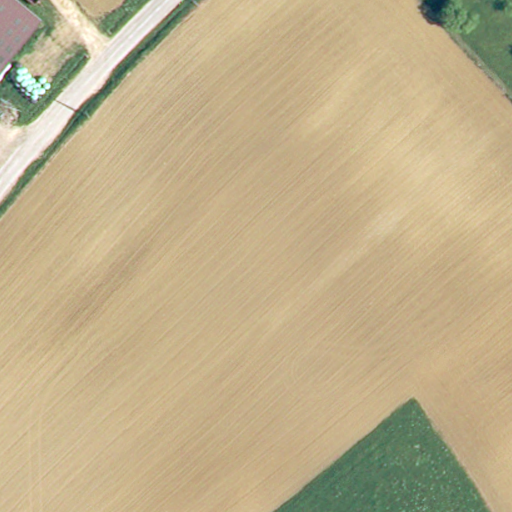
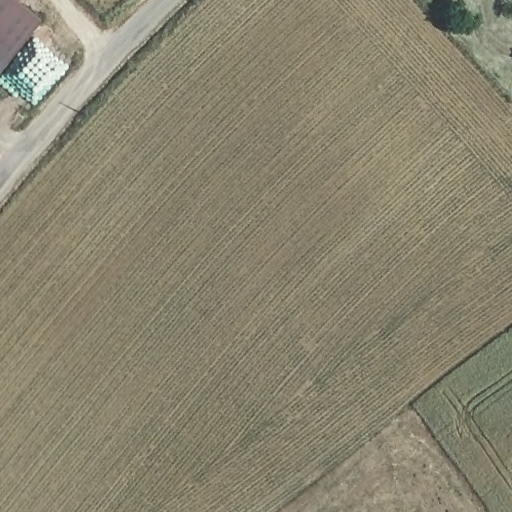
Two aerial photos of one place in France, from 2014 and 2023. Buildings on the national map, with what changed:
unchanged [(16,0),(39,19),(0,67),(0,0),(16,0)]

